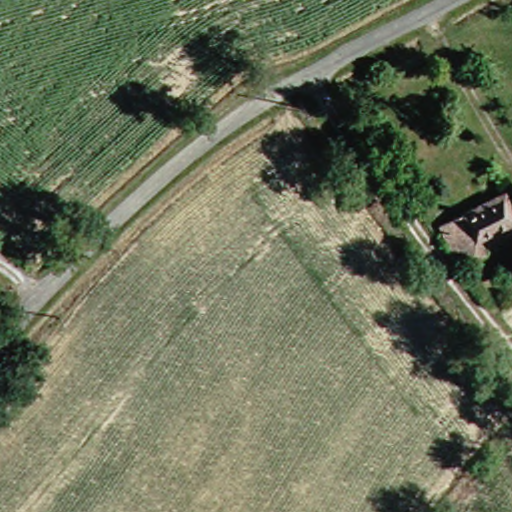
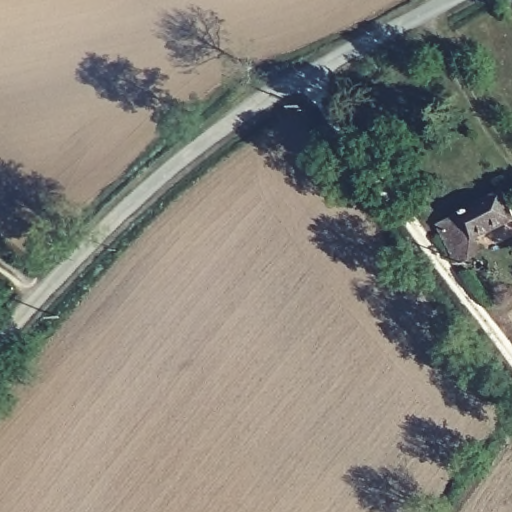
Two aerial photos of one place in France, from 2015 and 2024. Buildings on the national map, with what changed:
unchanged [(500,197),(512,221),(446,256),(429,231),(500,197)]
unchanged [(512,285),(512,296),(478,314),(474,307),(473,306),(512,285)]

